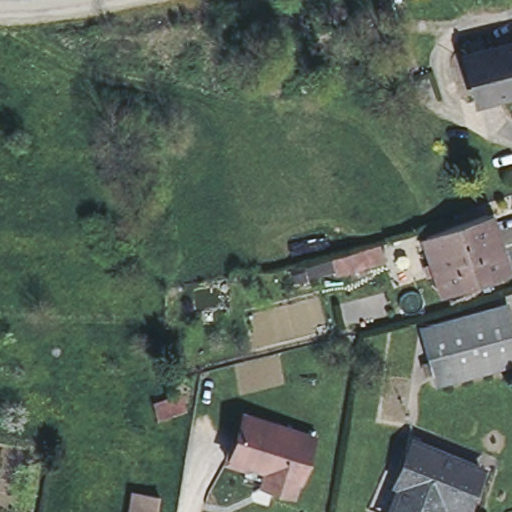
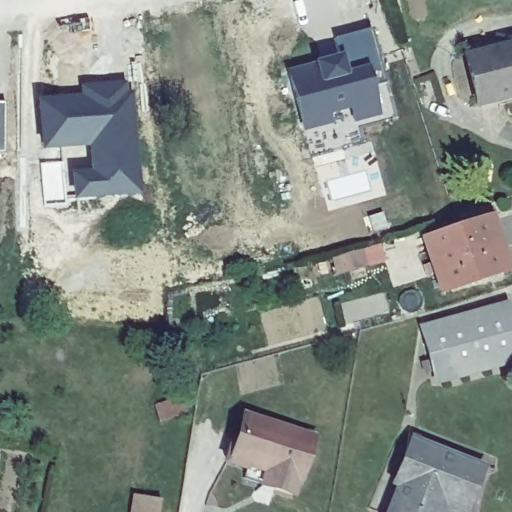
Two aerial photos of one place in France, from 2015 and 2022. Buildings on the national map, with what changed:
new [(319,62),(318,59),(342,52),(337,37),(373,30),(386,81),(375,84),(382,113),(355,119),(352,107),(331,111),(334,122),(305,128),(289,67),(319,62)]
unchanged [(512,47),(512,96),(477,105),(465,60),(512,47)]
new [(82,93),(82,84),(130,81),(130,90),(136,90),(144,194),(77,199),(75,171),(92,170),(92,145),(44,147),(40,96),(82,93)]
new [(5,152),(0,152),(0,102),(6,102),(5,152)]
unchanged [(485,217),(504,272),(443,292),(425,237),(485,217)]
unchanged [(357,249),(360,263),(334,270),(330,255),(357,249)]
unchanged [(501,307),(512,349),(512,361),(435,382),(422,330),(501,307)]
unchanged [(182,399),(187,414),(159,423),(154,408),(182,399)]
unchanged [(313,438),(300,482),(297,481),(292,495),(242,480),(245,470),(225,463),(232,440),(235,442),(243,417),(313,438)]
unchanged [(454,512),(381,512),(394,482),(390,481),(407,436),(475,463),(454,512)]
unchanged [(159,512),(131,512),(134,497),(160,501),(159,512)]

